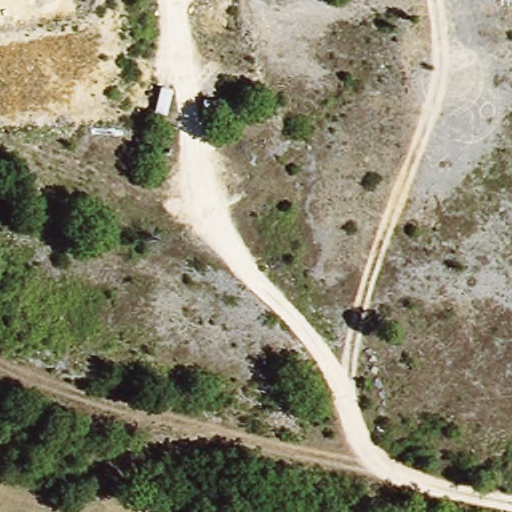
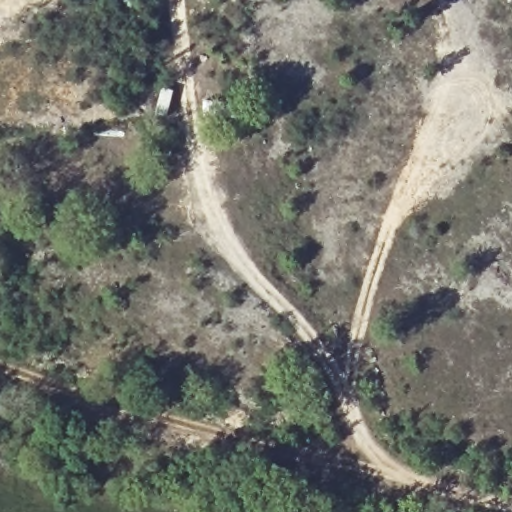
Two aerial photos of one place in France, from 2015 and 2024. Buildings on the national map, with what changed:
unchanged [(173,149),(151,147),(152,130),(176,130),(173,149)]

